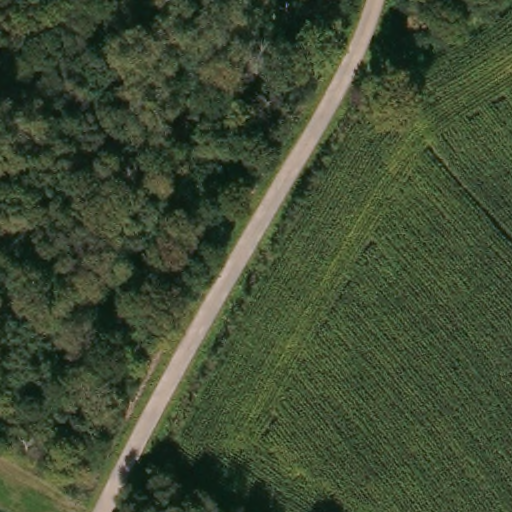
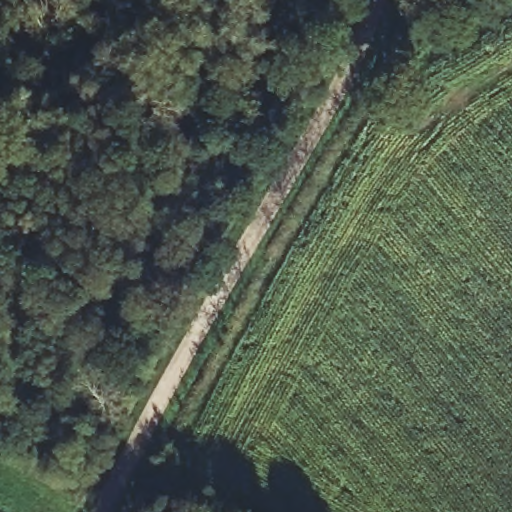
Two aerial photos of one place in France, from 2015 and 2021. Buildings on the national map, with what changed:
[]

